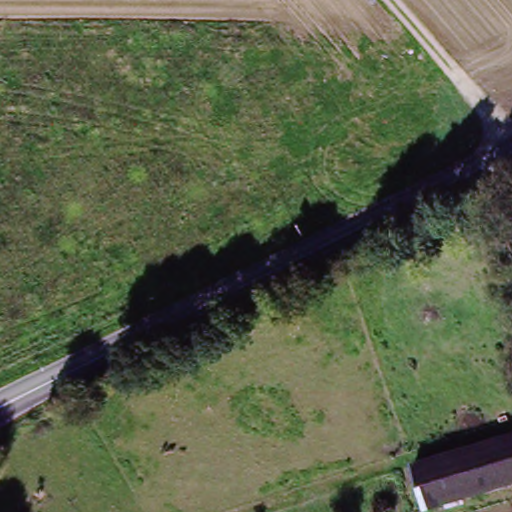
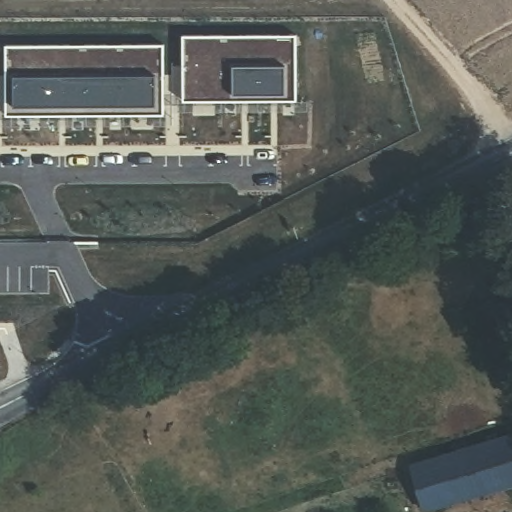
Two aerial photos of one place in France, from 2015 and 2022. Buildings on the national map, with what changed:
new [(184,103),(184,90),(184,64),(184,37),(224,36),(225,41),(240,41),(240,36),(281,36),(298,36),(298,41),(298,102),(282,102),(272,102),(249,102),(239,103),(184,103)]
new [(7,117),(7,105),(6,78),(6,46),(70,46),(70,51),(86,51),(85,46),(108,46),(108,51),(123,51),(123,46),(165,46),(165,77),(166,104),(166,116),(108,117),(98,117),(70,117),(60,117),(7,117)]
unchanged [(388,501),(384,470),(512,434),(512,483),(422,512),(419,512),(412,492),(388,501)]

